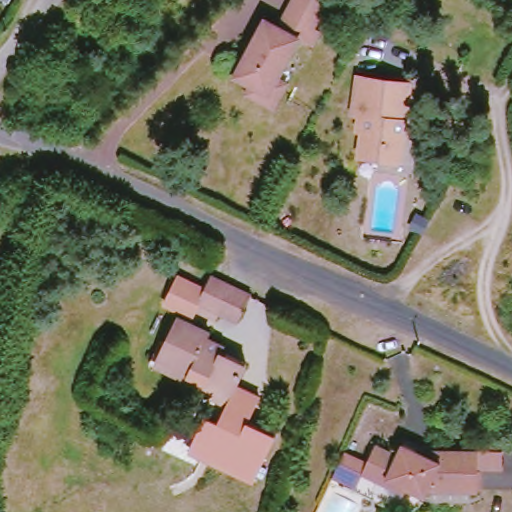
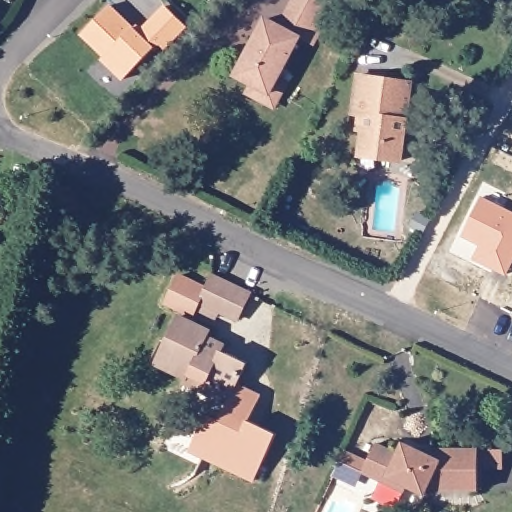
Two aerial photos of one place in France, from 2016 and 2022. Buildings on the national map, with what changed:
unchanged [(280,111),(254,97),(258,87),(242,79),(274,22),(287,31),(302,4),(304,0),(323,0),(335,7),(329,19),(322,32),(329,36),(320,50),(307,42),(284,82),(293,87),(280,111)]
new [(139,35),(167,7),(187,26),(165,49),(159,44),(124,80),(104,60),(106,57),(82,34),(110,6),(139,35)]
unchanged [(415,92),(407,130),(410,135),(408,142),(404,144),(399,171),(360,162),(365,137),(361,136),(364,122),(357,121),(364,83),(415,92)]
new [(512,263),(506,275),(475,260),(482,244),(463,235),(481,198),(512,213),(512,263)]
new [(430,220),(422,233),(412,227),(419,214),(430,220)]
unchanged [(202,308),(198,318),(167,304),(182,271),(213,284),(202,308)]
unchanged [(247,324),(230,317),(207,308),(220,278),(259,294),(250,311),(252,312),(247,324)]
unchanged [(183,389),(187,380),(150,363),(160,340),(167,342),(167,341),(179,316),(204,327),(200,337),(218,345),(215,351),(222,354),(245,364),(225,408),(183,389)]
unchanged [(264,393),(254,419),(277,430),(257,481),(190,451),(207,413),(225,420),(232,405),(244,383),(264,393)]
unchanged [(369,477),(382,448),(404,458),(409,447),(422,453),(437,453),(484,453),(509,452),(509,471),(484,472),(484,493),(434,494),(431,499),(413,491),(410,497),(391,487),(369,477)]

